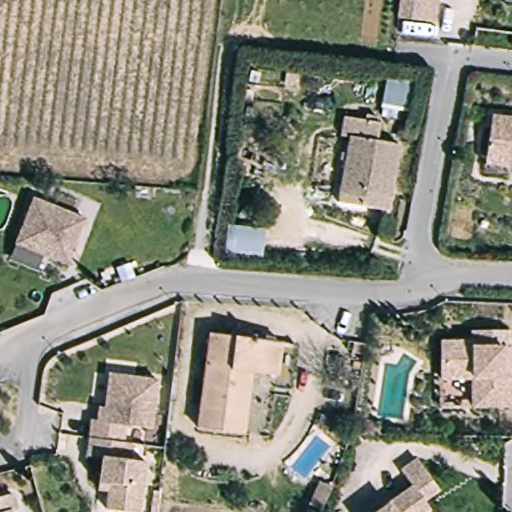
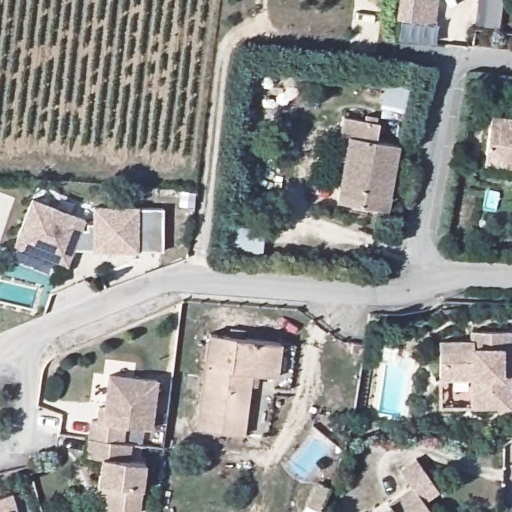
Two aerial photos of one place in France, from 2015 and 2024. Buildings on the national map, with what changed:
unchanged [(400,0),(425,0),(438,1),(434,29),(397,24),(398,22),(400,0)]
unchanged [(489,150),(494,113),(512,115),(512,164),(489,161),(489,150)]
unchanged [(394,131),(390,147),(412,152),(401,202),(356,193),(368,143),(359,141),(362,125),(394,131)]
unchanged [(35,200),(88,218),(68,265),(15,247),(35,200)]
new [(94,222),(94,206),(138,207),(161,208),(163,252),(136,254),(91,254),(91,249),(75,250),(85,222),(94,222)]
unchanged [(259,261),(221,258),(225,225),(266,228),(259,261)]
unchanged [(474,342),(474,331),(511,332),(511,350),(511,377),(510,408),(474,408),(474,378),(442,378),(441,342),(474,342)]
unchanged [(279,377),(249,372),(241,432),(199,425),(213,333),(284,342),(279,377)]
unchanged [(93,420),(105,422),(111,373),(159,380),(153,428),(133,425),(131,443),(91,438),(93,420)]
unchanged [(131,443),(128,461),(149,463),(144,512),(130,512),(108,510),(111,485),(101,483),(103,458),(88,456),(91,438),(131,443)]
unchanged [(392,504),(413,490),(404,471),(423,460),(447,495),(431,505),(434,512),(381,512),(392,504)]
unchanged [(0,500),(20,495),(24,510),(18,512),(0,512),(0,500)]

